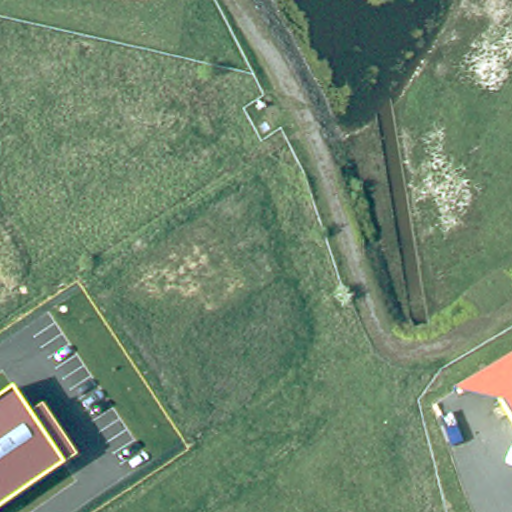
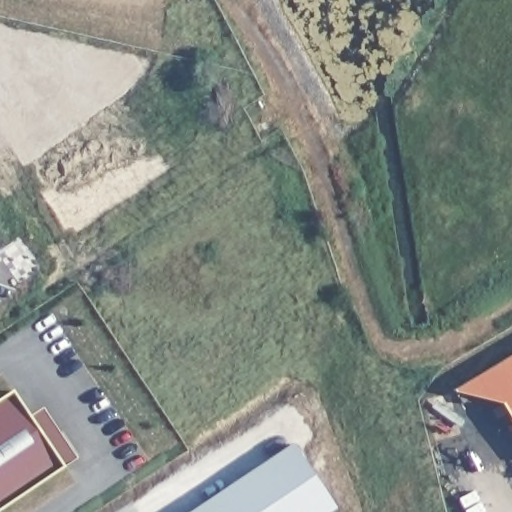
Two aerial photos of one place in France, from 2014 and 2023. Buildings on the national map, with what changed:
unchanged [(512,357),(512,431),(498,408),(450,391),(480,374),(512,357)]
unchanged [(29,417),(45,407),(80,460),(2,512),(0,512),(0,396),(11,389),(29,417)]
new [(291,443),(336,511),(334,512),(189,512),(291,443)]

